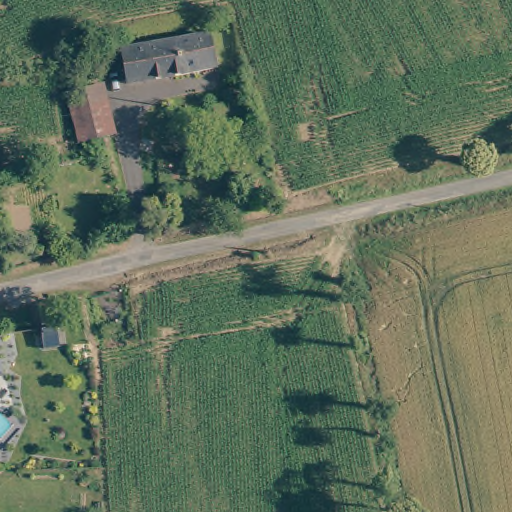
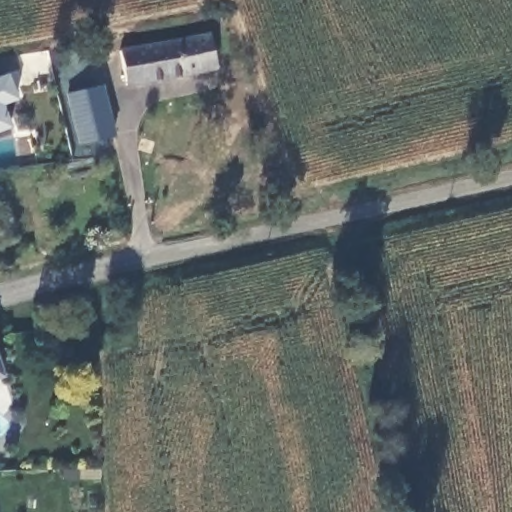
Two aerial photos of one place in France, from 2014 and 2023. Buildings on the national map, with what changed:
unchanged [(205,36),(211,70),(133,89),(125,52),(205,36)]
new [(13,127),(0,132),(0,75),(9,71),(19,100),(5,106),(13,127)]
unchanged [(104,89),(115,135),(81,143),(70,95),(74,93),(104,89)]
unchanged [(0,378),(0,347),(9,375),(0,378)]

